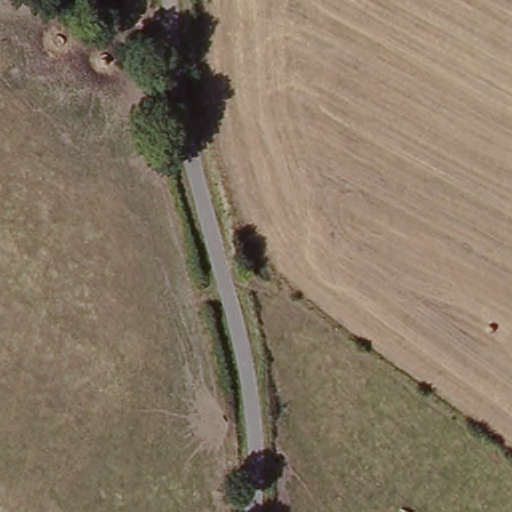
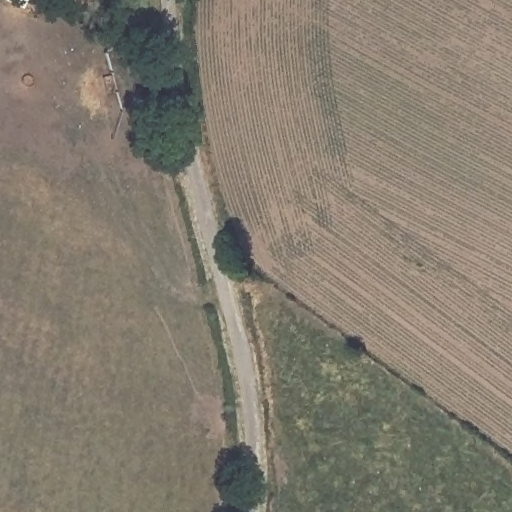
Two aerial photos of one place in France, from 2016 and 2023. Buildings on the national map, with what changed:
[]

